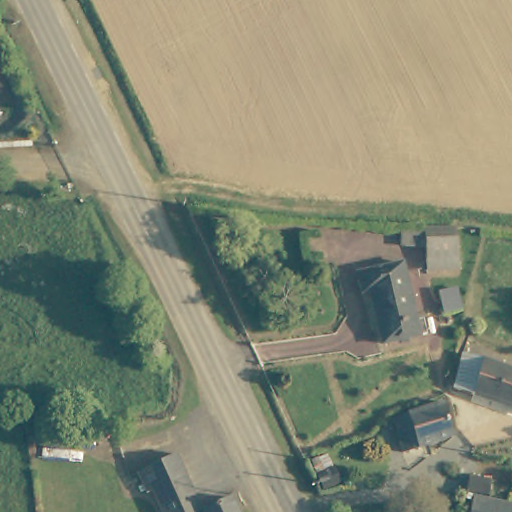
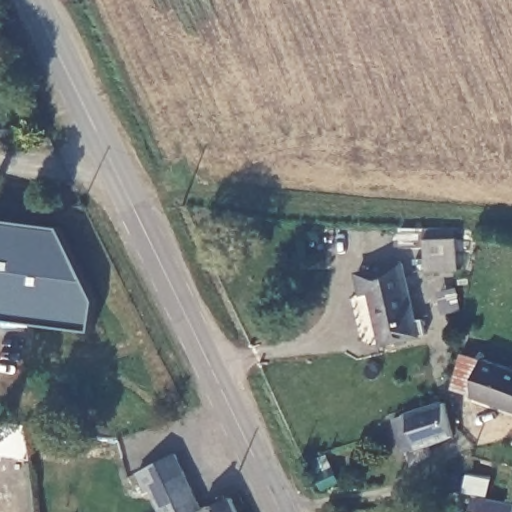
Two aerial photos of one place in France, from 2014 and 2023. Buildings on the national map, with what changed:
new [(0,317),(0,218),(59,226),(95,301),(92,330),(0,317)]
unchanged [(462,266),(430,267),(430,244),(405,244),(404,232),(429,231),(430,237),(460,236),(462,266)]
unchanged [(415,317),(422,316),(425,329),(382,340),(370,288),(361,290),(357,270),(402,260),(404,267),(415,317)]
unchanged [(440,288),(454,285),(459,305),(445,307),(440,288)]
unchanged [(461,350),(512,366),(512,405),(453,385),(461,350)]
unchanged [(390,412),(406,408),(443,398),(454,433),(434,440),(418,443),(402,447),(390,412)]
unchanged [(142,487),(132,469),(155,457),(169,449),(178,470),(195,507),(225,493),(231,505),(235,512),(159,512),(146,485),(142,487)]
unchanged [(512,506),(512,510),(512,512),(468,512),(471,498),(512,506)]

